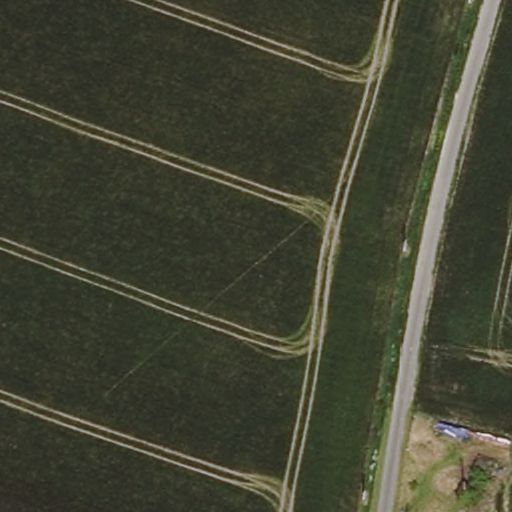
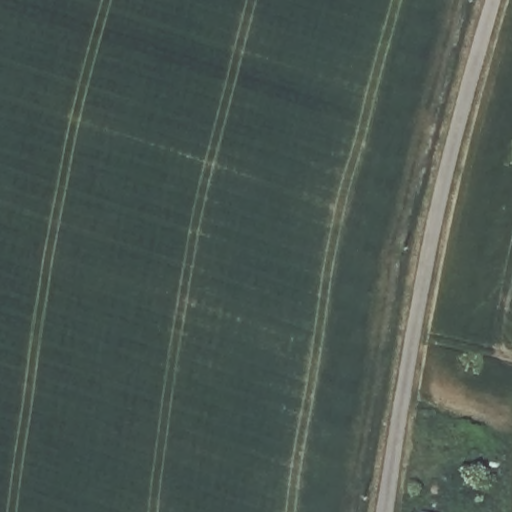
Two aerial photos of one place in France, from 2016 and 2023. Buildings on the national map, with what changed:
unchanged [(478,448),(493,453),(482,488),(467,484),(478,448)]

